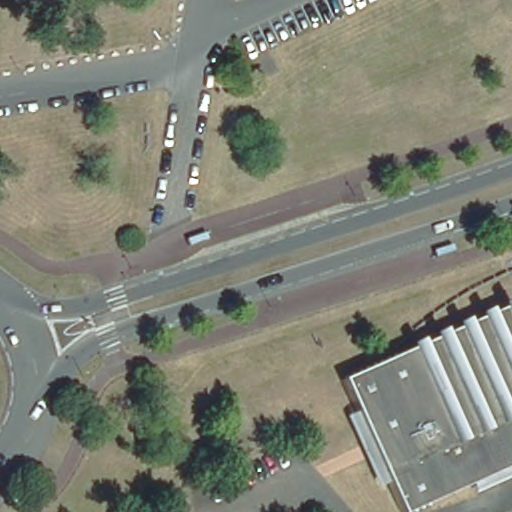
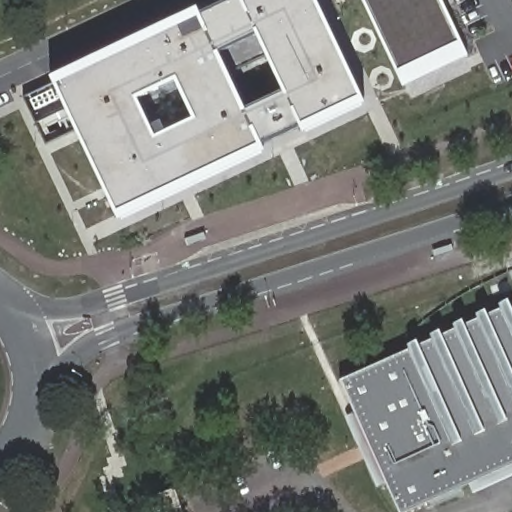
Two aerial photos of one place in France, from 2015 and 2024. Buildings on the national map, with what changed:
new [(48,77),(213,0),(310,0),(357,98),(110,212),(73,133),(54,142),(31,94),(50,85),(48,77)]
new [(401,81),(362,0),(441,0),(466,52),(401,81)]
unchanged [(340,384),(507,307),(512,317),(512,467),(471,485),(413,512),(398,512),(340,384)]
new [(180,512),(151,512),(147,502),(173,492),(180,512)]

